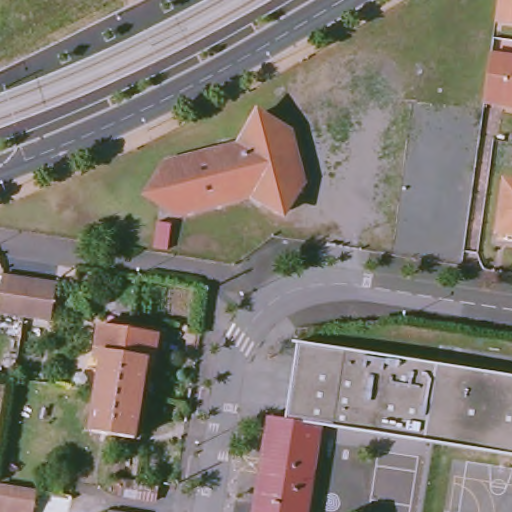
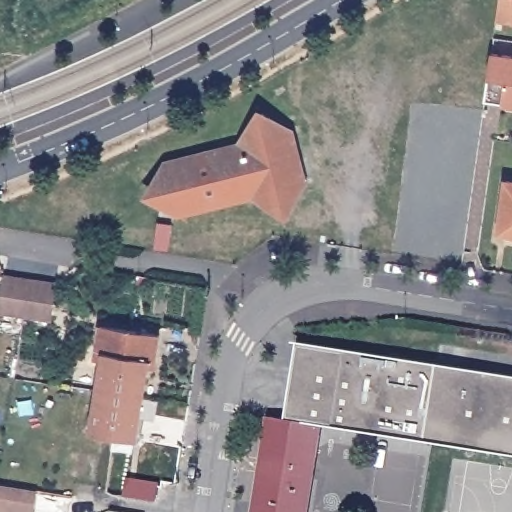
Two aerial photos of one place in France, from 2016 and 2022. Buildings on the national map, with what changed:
unchanged [(497,0),(512,0),(512,22),(494,20),(497,0)]
unchanged [(490,53),(512,56),(512,107),(500,106),(482,102),(490,53)]
unchanged [(242,141),(262,110),(291,127),(301,171),(296,179),(305,184),(286,214),(256,194),(178,212),(150,191),(167,158),(242,141)]
unchanged [(512,185),(512,238),(497,236),(504,185),(512,185)]
unchanged [(170,252),(156,249),(160,225),(175,227),(170,252)]
unchanged [(47,316),(34,313),(20,311),(7,309),(0,307),(0,274),(12,276),(26,279),(39,281),(53,283),(47,316)]
unchanged [(110,434),(88,430),(95,389),(100,349),(95,348),(98,323),(126,328),(157,333),(153,357),(146,356),(140,395),(133,438),(110,434)]
unchanged [(303,345),(512,378),(512,457),(325,428),(291,422),(303,345)]
unchanged [(325,428),(311,512),(259,512),(274,419),(291,422),(325,428)]
unchanged [(35,512),(25,512),(0,508),(0,489),(37,495),(35,512)]

